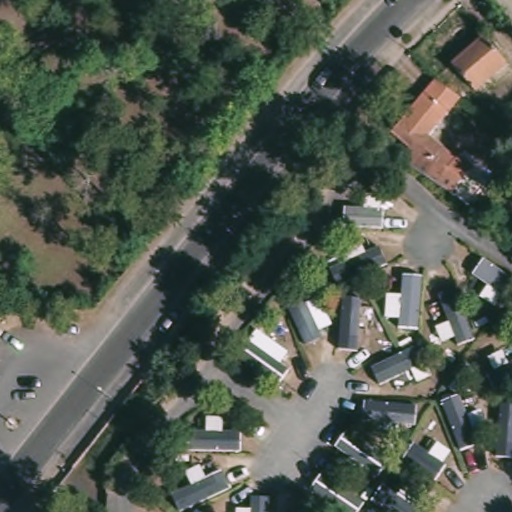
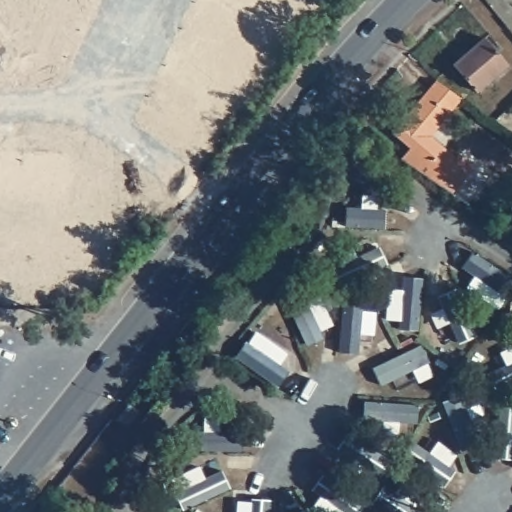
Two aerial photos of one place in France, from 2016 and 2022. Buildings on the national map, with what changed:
unchanged [(502,69),(472,95),(449,69),(478,43),(502,69)]
unchanged [(405,121),(437,81),(459,98),(428,140),(405,121)]
unchanged [(399,164),(408,153),(391,138),(405,121),(455,164),(459,160),(473,173),(450,198),(436,189),(399,164)]

